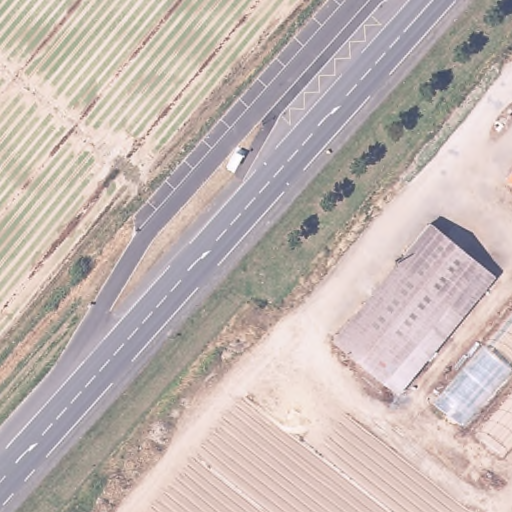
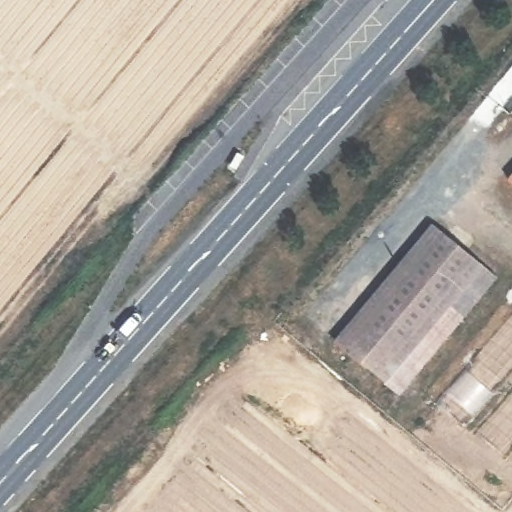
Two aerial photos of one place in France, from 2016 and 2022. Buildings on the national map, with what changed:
unchanged [(400,394),(335,341),(431,223),(496,276),(400,394)]
unchanged [(465,427),(435,401),(479,350),(509,375),(465,427)]

